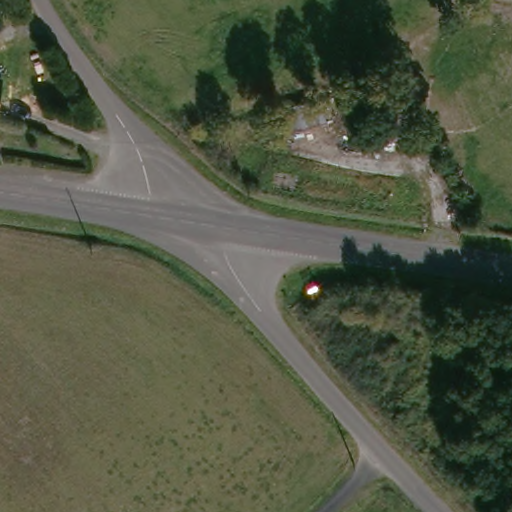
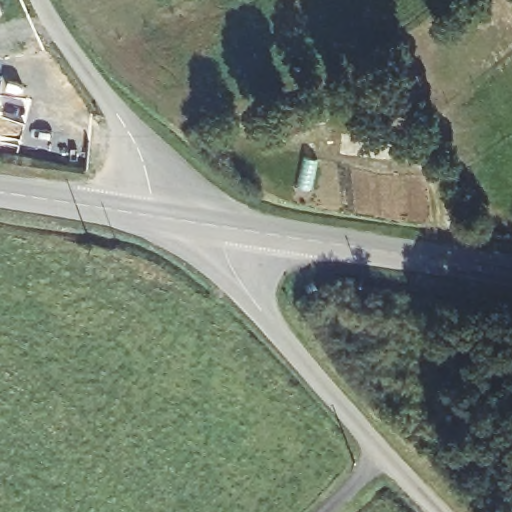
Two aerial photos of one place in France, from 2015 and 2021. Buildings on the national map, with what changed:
unchanged [(2,77),(0,87),(0,76),(2,77)]
unchanged [(266,141),(259,117),(321,98),(327,122),(266,141)]

